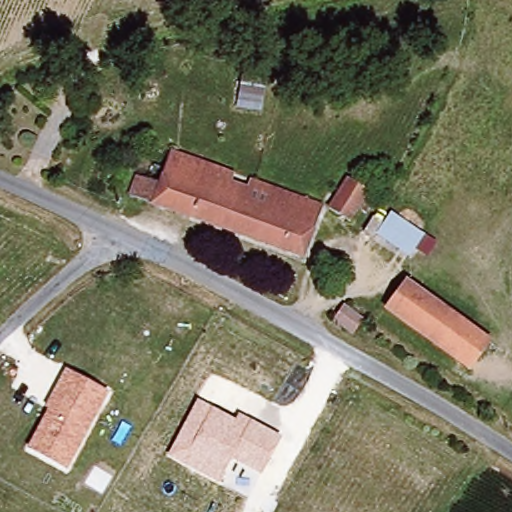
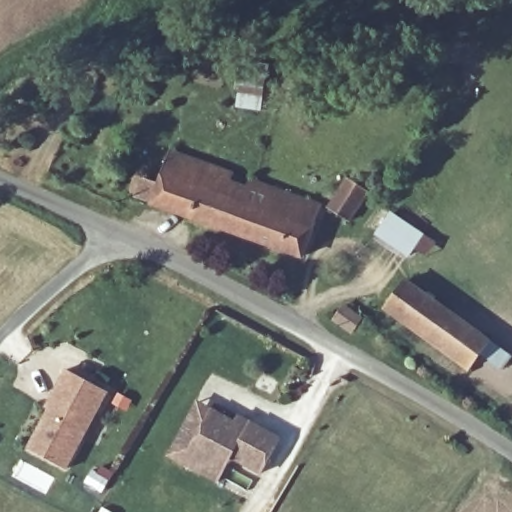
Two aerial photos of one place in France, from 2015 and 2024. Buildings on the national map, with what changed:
unchanged [(250,64),(271,72),(270,77),(256,116),(234,109),(250,67),(250,64)]
unchanged [(120,208),(124,195),(132,171),(141,175),(147,162),(155,163),(158,155),(151,152),(154,146),(314,206),(294,252),(136,199),(130,212),(120,208)]
unchanged [(356,186),(339,217),(318,208),(337,176),(356,186)]
unchanged [(415,234),(402,259),(371,241),(384,217),(415,234)]
unchanged [(483,345),(462,371),(379,311),(398,286),(483,345)]
unchanged [(357,321),(347,334),(333,322),(341,311),(357,321)]
unchanged [(110,392),(68,470),(27,447),(46,411),(43,409),(64,369),(110,392)]
unchanged [(235,420),(239,414),(281,437),(262,475),(231,460),(218,484),(166,455),(198,400),(235,420)]

